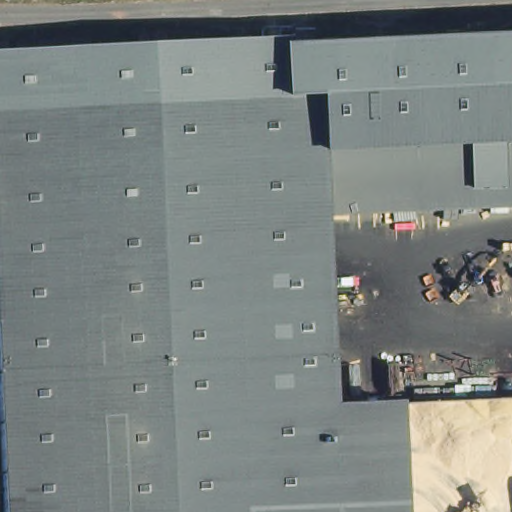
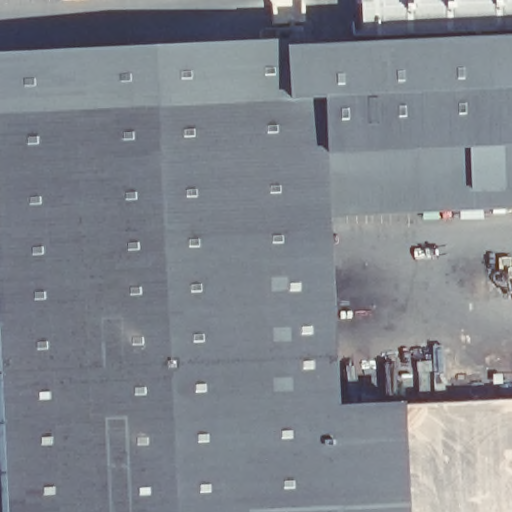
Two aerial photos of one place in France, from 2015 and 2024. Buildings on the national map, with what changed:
unchanged [(274,40),(274,47),(512,36),(512,210),(324,220),(331,406),(398,402),(403,512),(2,512),(0,478),(0,52),(274,40)]

